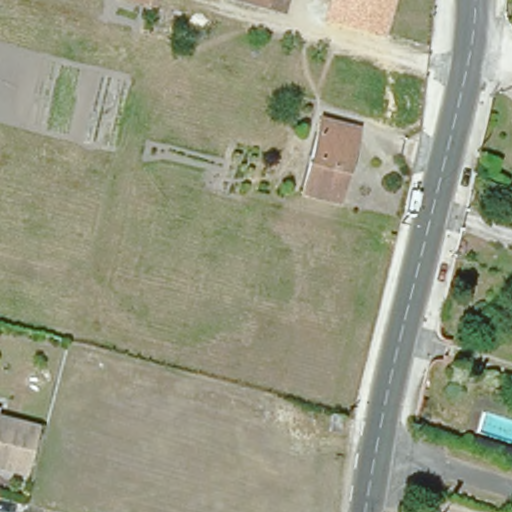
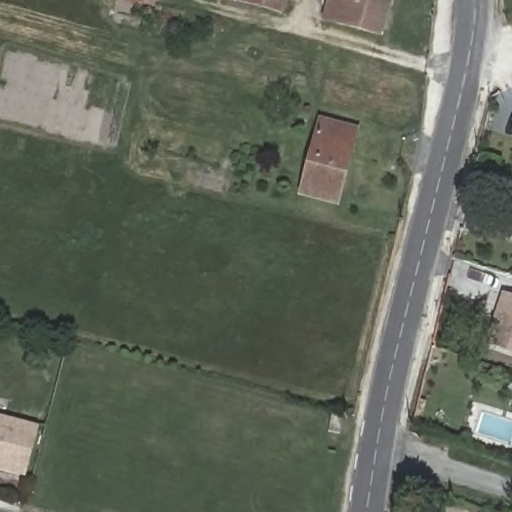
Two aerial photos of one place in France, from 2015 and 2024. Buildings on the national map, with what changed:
unchanged [(154,7),(124,0),(156,0),(154,7)]
unchanged [(282,14),(229,0),(286,0),(282,14)]
unchanged [(381,34),(323,18),(328,0),(391,0),(381,34)]
unchanged [(337,202),(298,191),(320,119),(357,129),(337,202)]
new [(486,343),(502,292),(512,295),(512,351),(486,343)]
unchanged [(22,477),(0,471),(0,422),(34,431),(22,477)]

